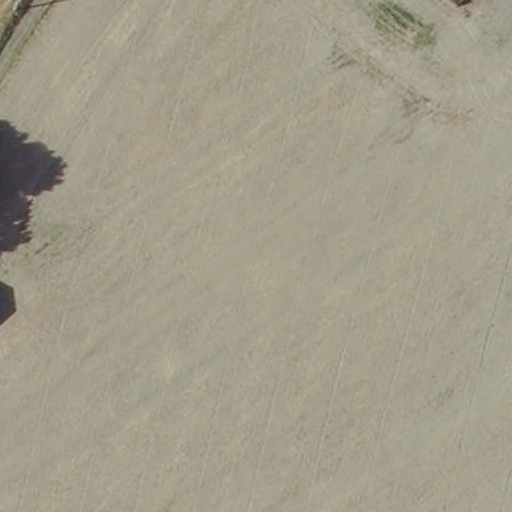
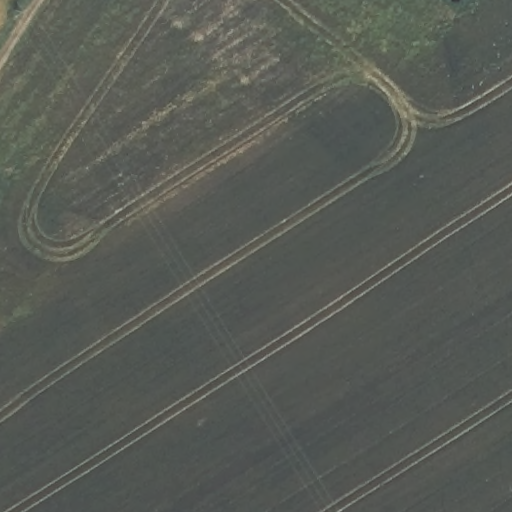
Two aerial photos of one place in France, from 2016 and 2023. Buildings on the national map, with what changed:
[]

